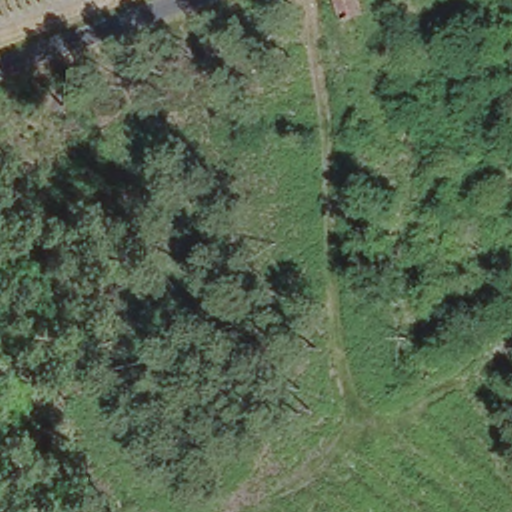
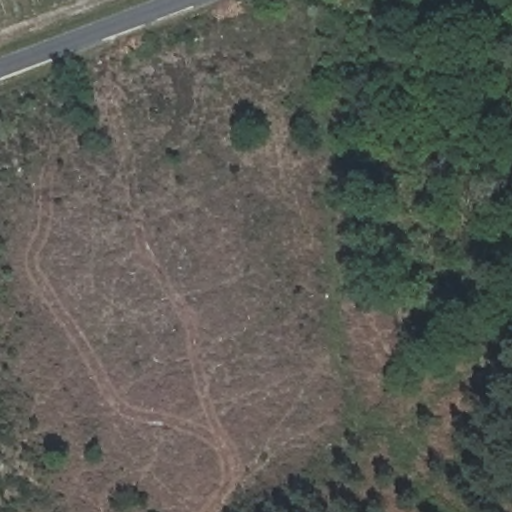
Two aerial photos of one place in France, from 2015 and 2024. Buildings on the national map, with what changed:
unchanged [(328,15),(325,0),(350,0),(352,11),(328,15)]

